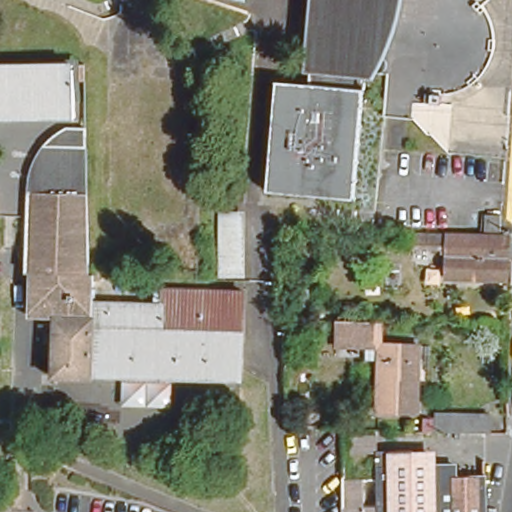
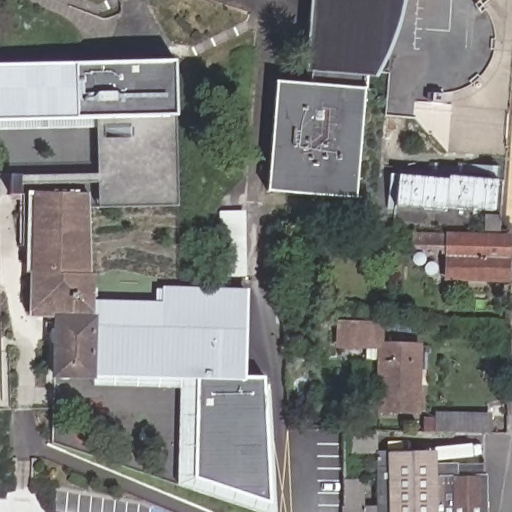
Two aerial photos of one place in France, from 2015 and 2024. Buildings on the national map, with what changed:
unchanged [(374,88),(365,88),(355,203),(269,199),(277,45),(289,37),(291,14),(281,3),(282,0),(405,0),(404,3),(389,16),(385,51),(374,52),(374,70),(374,88)]
unchanged [(488,2),(495,19),(498,32),(497,46),(494,54),(488,64),(477,74),(463,79),(435,87),(435,98),(456,100),(452,148),(418,115),(382,111),(383,70),(374,70),(374,52),(385,51),(389,16),(404,3),(405,0),(491,0),(488,2)]
unchanged [(29,59),(73,56),(73,64),(73,111),(27,112),(29,59)]
unchanged [(29,59),(27,112),(0,113),(0,60),(29,59)]
new [(73,64),(174,61),(175,117),(93,119),(85,119),(74,120),(73,111),(73,64)]
new [(96,209),(93,119),(175,117),(177,206),(96,209)]
demolished [(37,146),(42,138),(62,121),(85,119),(85,147),(37,146)]
unchanged [(31,188),(85,188),(86,250),(28,249),(31,188)]
unchanged [(485,211),(485,209),(502,210),(502,212),(500,229),(484,229),(485,211)]
new [(220,278),(219,211),(244,211),(246,277),(220,278)]
unchanged [(510,231),(509,253),(507,277),(450,274),(450,243),(427,242),(414,242),(414,227),(427,228),(482,230),(510,231)]
unchanged [(27,319),(28,249),(86,250),(85,267),(94,267),(95,291),(90,291),(90,301),(161,301),(161,293),(161,285),(242,287),(242,296),(244,361),(244,375),(196,373),(96,370),(96,377),(53,376),(54,319),(27,319)]
unchanged [(338,317),(350,317),(380,318),(379,342),(337,340),(338,317)]
unchanged [(415,408),(378,407),(379,342),(415,342),(415,408)]
new [(196,373),(244,375),(265,377),(271,506),(193,479),(196,373)]
unchanged [(436,424),(437,404),(488,406),(488,425),(436,424)]
unchanged [(413,474),(456,473),(456,484),(487,484),(487,495),(341,498),(341,460),(341,442),(376,442),(376,459),(412,459),(413,474)]
unchanged [(487,495),(487,512),(342,512),(341,498),(487,495)]

